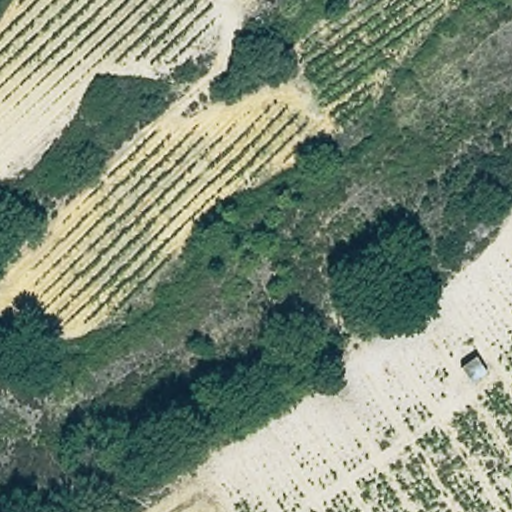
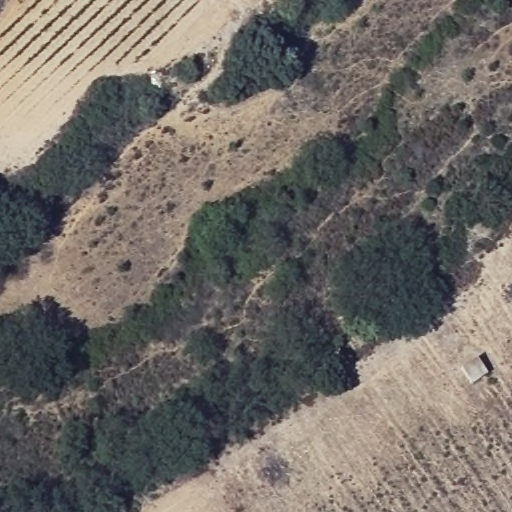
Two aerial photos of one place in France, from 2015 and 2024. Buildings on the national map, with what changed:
unchanged [(472,353),(488,369),(470,384),(459,366),(472,353)]

